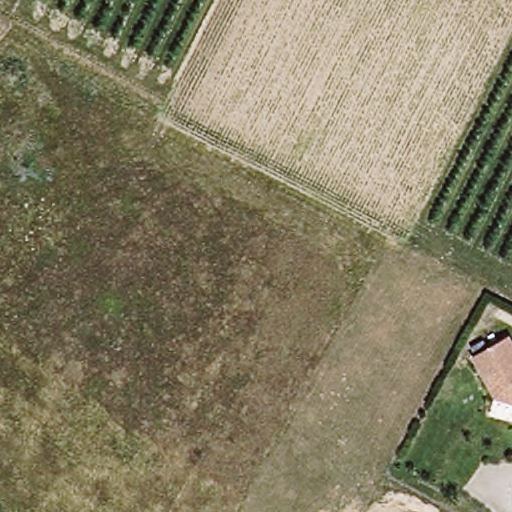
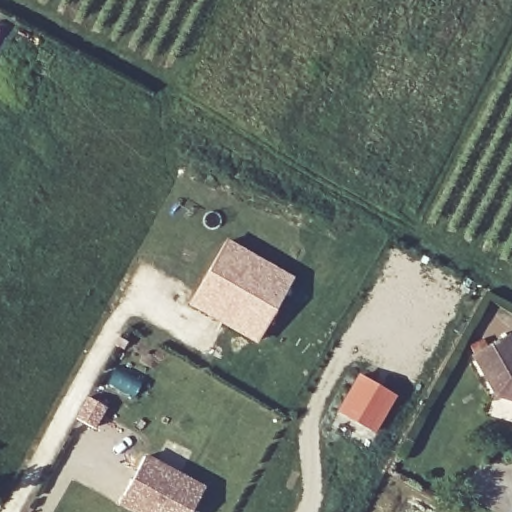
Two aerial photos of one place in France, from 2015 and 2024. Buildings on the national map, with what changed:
new [(226,238),(295,277),(257,343),(188,303),(226,238)]
unchanged [(506,336),(512,347),(512,401),(494,396),(471,355),(506,336)]
new [(359,365),(398,386),(369,437),(331,416),(359,365)]
new [(144,457),(203,491),(190,512),(131,512),(118,505),(123,496),(144,457)]

